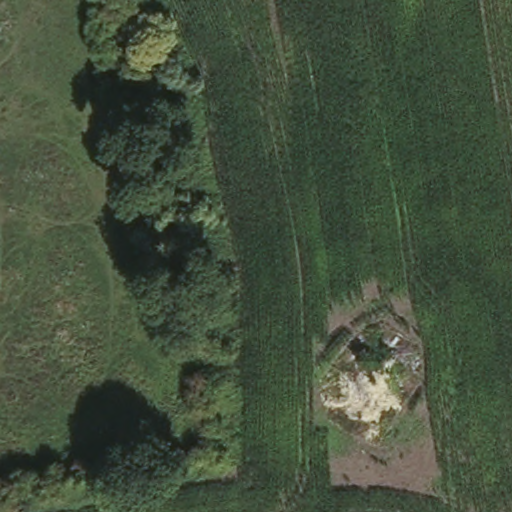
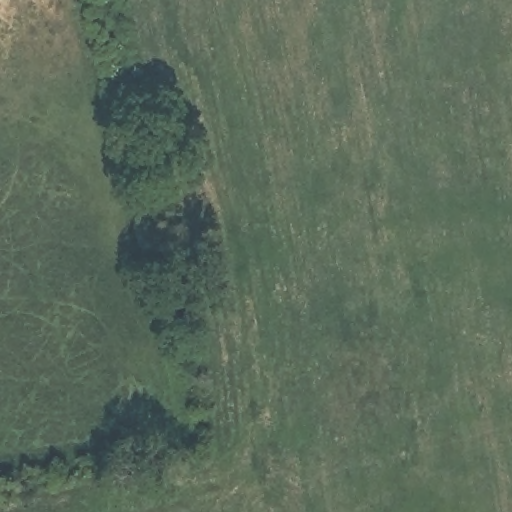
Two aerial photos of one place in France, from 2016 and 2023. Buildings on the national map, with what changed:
unchanged [(347,366),(376,362),(387,362),(392,401),(382,402),(351,406),(347,366)]

